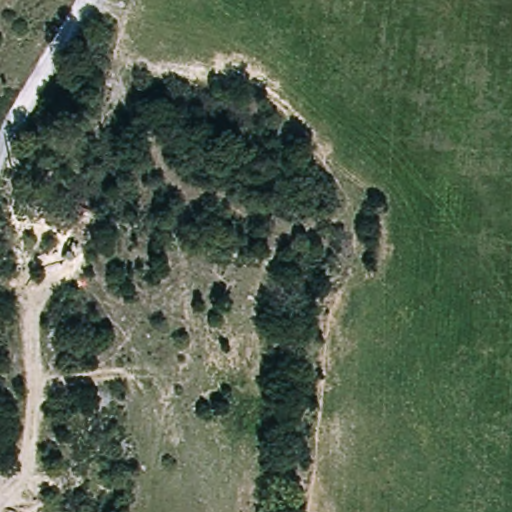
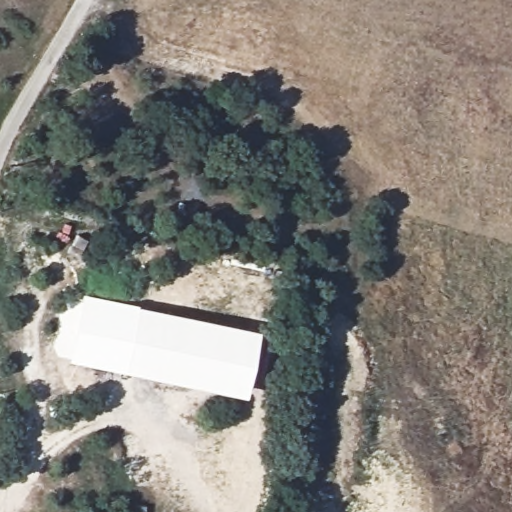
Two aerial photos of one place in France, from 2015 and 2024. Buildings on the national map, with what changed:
new [(137,304),(136,306),(123,370),(66,360),(80,292),(137,304)]
new [(123,373),(136,306),(257,330),(243,397),(123,373)]

